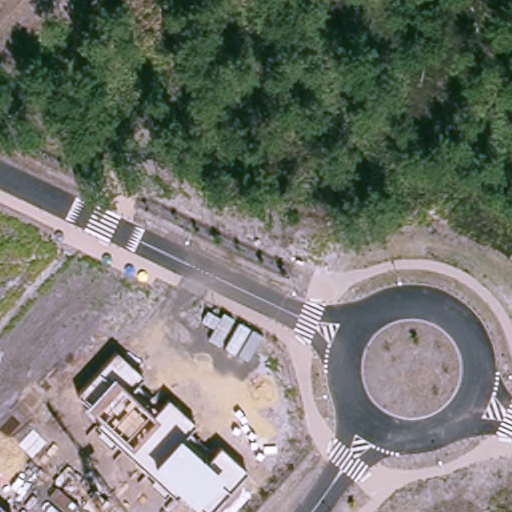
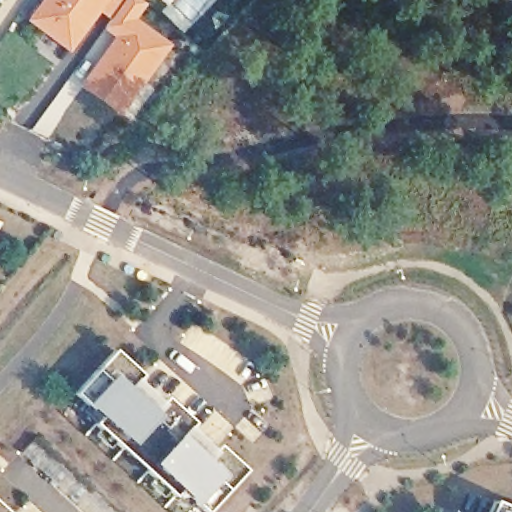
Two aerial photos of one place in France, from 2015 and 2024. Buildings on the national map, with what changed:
new [(26,21),(42,0),(142,0),(146,4),(136,19),(172,46),(122,116),(80,86),(115,38),(105,30),(111,21),(101,13),(70,54),(26,21)]
new [(165,1),(163,0),(166,0),(165,1)]
unchanged [(111,349),(139,373),(124,390),(149,412),(164,396),(191,421),(176,438),(201,460),(216,443),(244,468),(205,511),(179,488),(172,495),(144,470),(150,462),(126,441),(120,448),(92,422),(99,415),(72,392),(111,349)]
new [(489,512),(494,500),(512,508),(512,512),(489,512)]
unchanged [(0,512),(0,507),(6,512),(0,512)]

